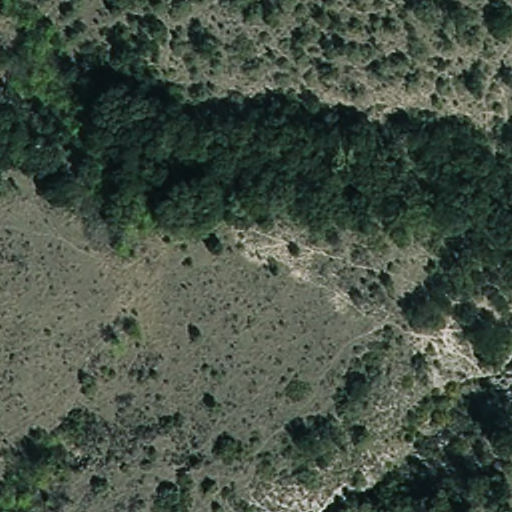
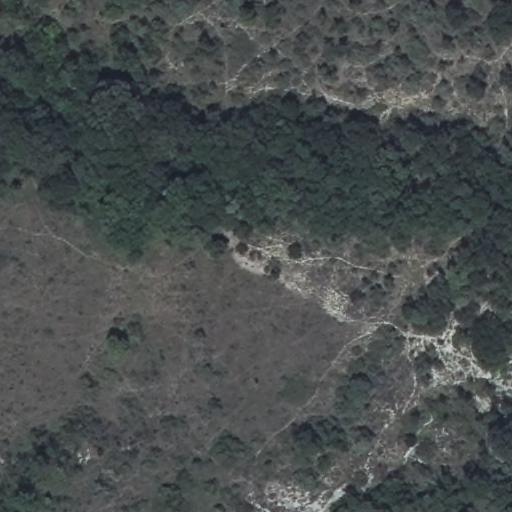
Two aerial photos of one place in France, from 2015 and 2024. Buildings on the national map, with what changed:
[]

